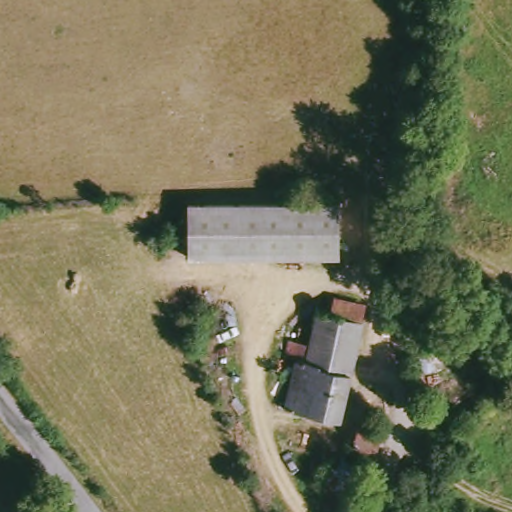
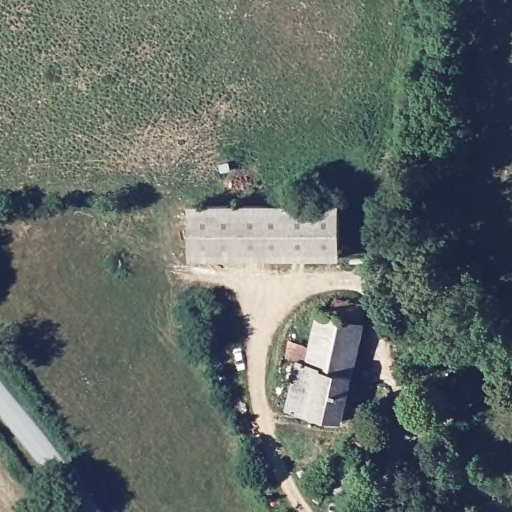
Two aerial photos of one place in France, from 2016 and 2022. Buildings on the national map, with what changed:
unchanged [(339,198),(340,251),(190,253),(189,200),(339,198)]
unchanged [(324,311),(330,312),(331,307),(338,308),(338,302),(371,310),(346,422),(314,414),(301,410),(314,364),(324,311)]
unchanged [(357,512),(328,480),(354,454),(381,487),(357,512)]

